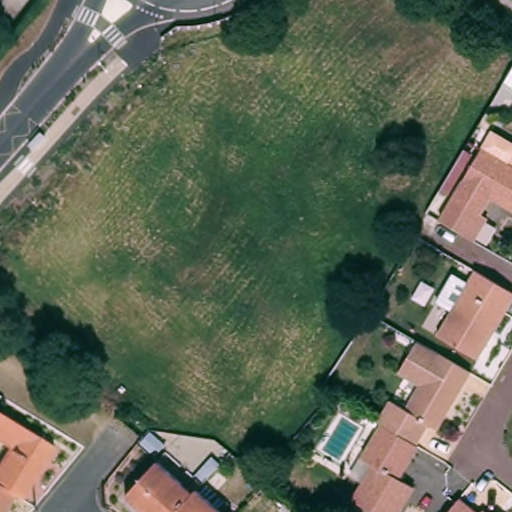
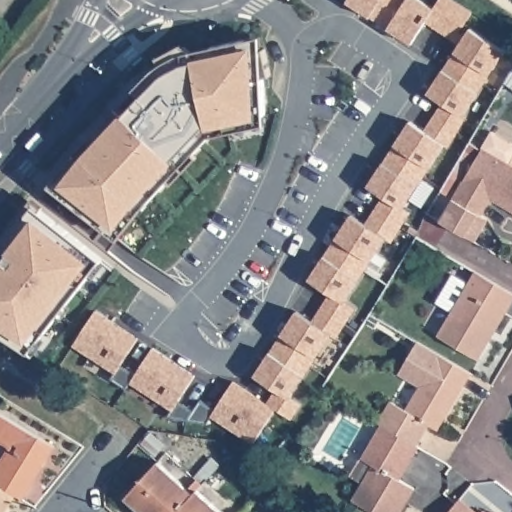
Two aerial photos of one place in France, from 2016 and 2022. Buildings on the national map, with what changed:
new [(438,0),(454,0),(472,11),(456,40),(425,22),(411,43),(347,1),(348,0),(423,0),(434,7),(438,0)]
new [(506,51),(463,114),(467,117),(448,147),(444,145),(431,167),(404,207),(411,210),(392,242),(387,238),(374,264),(370,259),(359,278),(345,300),(357,307),(336,338),(330,333),(316,355),(305,374),(290,397),(304,406),(294,421),(275,410),(267,403),(276,388),(254,375),(295,310),(311,318),(329,292),(309,279),(350,213),(365,223),(383,195),(368,184),(383,162),(409,120),(423,128),(442,100),(427,93),(443,69),(470,28),(506,51)]
new [(58,192),(50,186),(84,144),(106,121),(118,108),(124,113),(152,83),(147,78),(163,63),(158,58),(183,44),(186,46),(213,47),(247,39),(264,36),(266,49),(272,76),(264,77),(267,115),(267,125),(254,127),(229,133),(214,136),(212,137),(196,154),(170,181),(148,205),(120,240),(105,229),(58,192)]
unchanged [(496,198),(485,219),(457,202),(488,151),(498,133),(512,142),(512,208),(496,198)]
new [(0,332),(0,251),(2,248),(35,206),(104,260),(79,292),(62,314),(32,353),(0,332)]
unchanged [(512,292),(512,309),(482,360),(440,336),(477,271),(512,292)]
new [(133,379),(125,388),(109,377),(116,368),(74,344),(96,310),(136,338),(120,364),(136,373),(152,349),(192,376),(174,403),(133,379)]
unchanged [(441,430),(432,425),(420,446),(386,426),(385,426),(383,425),(395,403),(406,410),(421,385),(402,374),(421,343),(474,374),(441,430)]
new [(249,442),(211,415),(208,421),(189,418),(200,400),(216,408),(233,381),(267,403),(275,410),(249,442)]
unchanged [(0,483),(0,463),(1,464),(9,448),(15,451),(19,444),(15,441),(13,446),(0,438),(0,412),(55,445),(23,497),(16,493),(0,483)]
unchanged [(420,446),(423,448),(403,480),(417,488),(404,512),(373,512),(357,502),(378,467),(366,460),(386,426),(420,446)]
unchanged [(165,449),(155,461),(141,448),(151,436),(165,449)]
unchanged [(198,493),(182,512),(138,512),(127,502),(158,466),(188,492),(197,483),(202,488),(198,493)]
unchanged [(272,508),(256,493),(261,489),(248,477),(252,472),(260,480),(261,481),(264,484),(265,484),(280,498),(272,508)]
unchanged [(5,512),(0,512),(0,483),(16,493),(5,512)]
unchanged [(198,493),(218,512),(182,512),(198,493)]
unchanged [(461,500),(476,512),(451,512),(461,500)]
unchanged [(279,508),(284,502),(294,512),(283,512),(279,508)]
unchanged [(485,511),(487,512),(485,512),(485,511)]

